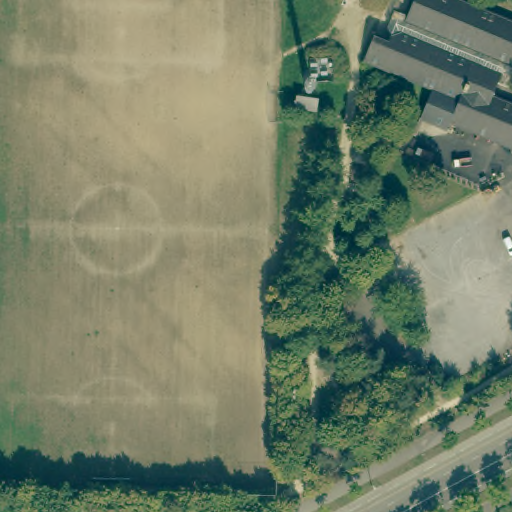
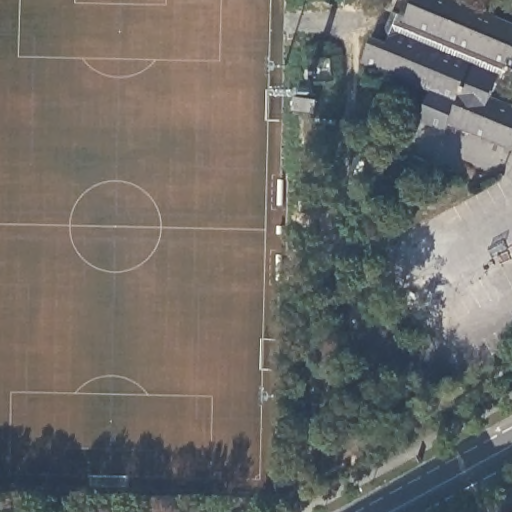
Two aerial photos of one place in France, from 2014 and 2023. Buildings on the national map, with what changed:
unchanged [(445,117),(442,124),(418,114),(412,131),(408,130),(416,113),(417,113),(428,84),(360,56),(371,31),(385,36),(387,31),(382,23),(390,4),(404,10),(408,0),(465,0),(512,20),(512,61),(503,80),(493,75),(487,91),(512,101),(512,133),(508,143),(446,117),(445,117)]
unchanged [(320,99),(318,111),(297,109),(300,96),(320,99)]

